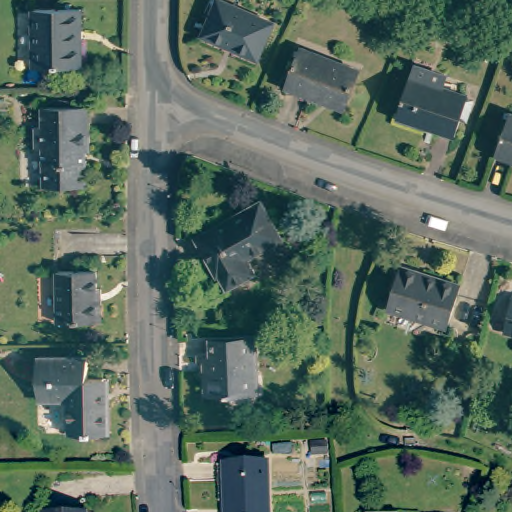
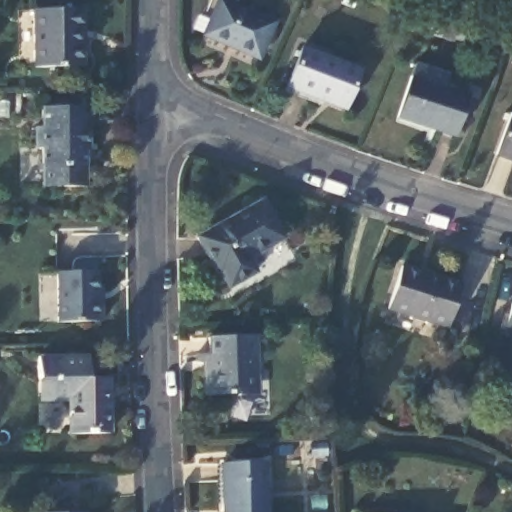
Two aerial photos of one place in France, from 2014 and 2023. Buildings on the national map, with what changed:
unchanged [(278,19),(262,56),(207,32),(222,0),(234,0),(278,19)]
unchanged [(90,5),(90,60),(44,62),(44,5),(90,5)]
unchanged [(370,66),(355,105),(297,84),(312,45),(370,66)]
unchanged [(474,117),(466,115),(461,132),(403,113),(416,72),(417,72),(421,62),(454,73),(450,83),(474,90),(473,93),(481,95),(474,117)]
unchanged [(57,98),(79,98),(79,103),(92,103),(92,147),(89,147),(90,182),(46,183),(45,146),(39,146),(38,123),(45,123),(45,103),(57,103),(57,98)]
unchanged [(503,153),(512,131),(512,157),(503,153)]
unchanged [(268,198),(290,235),(258,255),(266,269),(238,286),(230,272),(226,273),(205,236),(268,198)]
unchanged [(466,281),(452,323),(393,305),(407,262),(466,281)]
unchanged [(60,268),(100,267),(100,285),(104,285),(105,297),(105,317),(61,318),(60,268)]
unchanged [(510,330),(512,324),(512,331),(510,330)]
unchanged [(259,329),(261,363),(254,363),(255,386),(210,388),(208,348),(214,348),(213,332),(259,329)]
unchanged [(75,396),(58,396),(44,397),(43,374),(43,353),(93,351),(94,374),(110,374),(114,373),(114,396),(115,428),(76,429),(75,396)]
unchanged [(273,512),(229,512),(228,457),(271,456),(273,512)]
unchanged [(86,512),(42,512),(41,507),(85,507),(86,512)]

